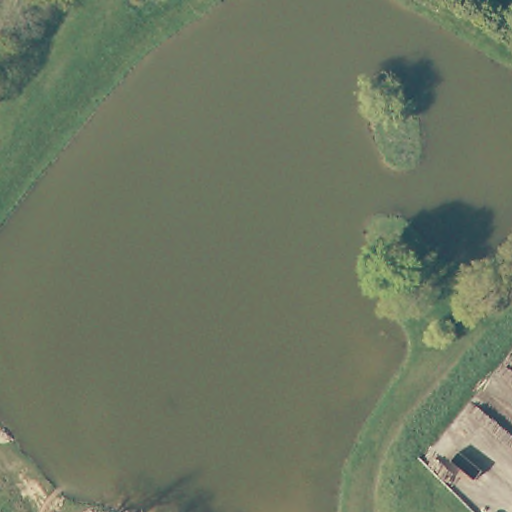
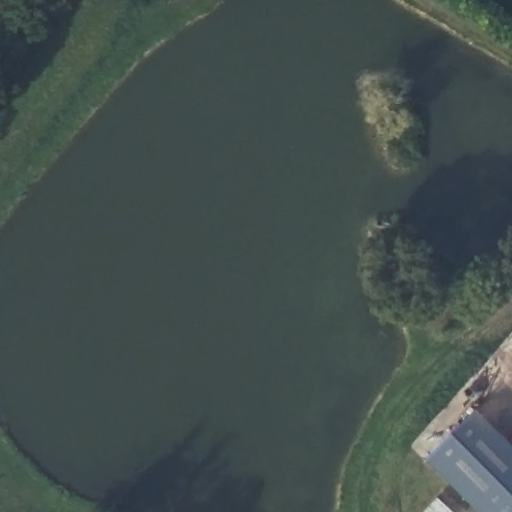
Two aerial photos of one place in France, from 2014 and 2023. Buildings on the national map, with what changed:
new [(475,411),(512,447),(512,512),(475,512),(424,462),(475,411)]

